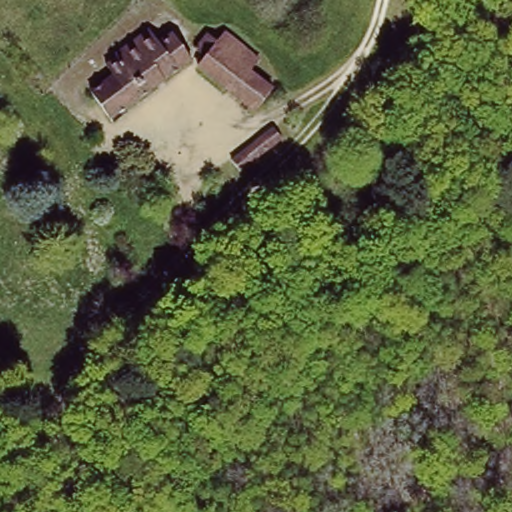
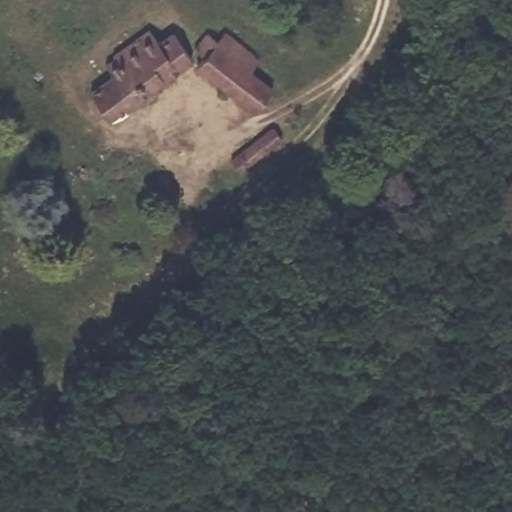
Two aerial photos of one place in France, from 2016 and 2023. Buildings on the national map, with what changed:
unchanged [(212,42),(224,29),(258,59),(244,73),(262,90),(242,114),(192,65),(198,58),(189,48),(203,34),(212,42)]
unchanged [(107,84),(98,74),(109,65),(107,62),(142,33),(155,47),(165,38),(185,63),(107,125),(87,100),(107,84)]
unchanged [(267,126),(278,139),(236,173),(227,160),(267,126)]

